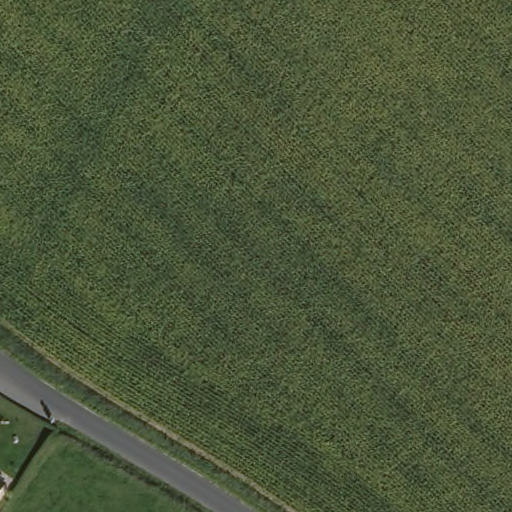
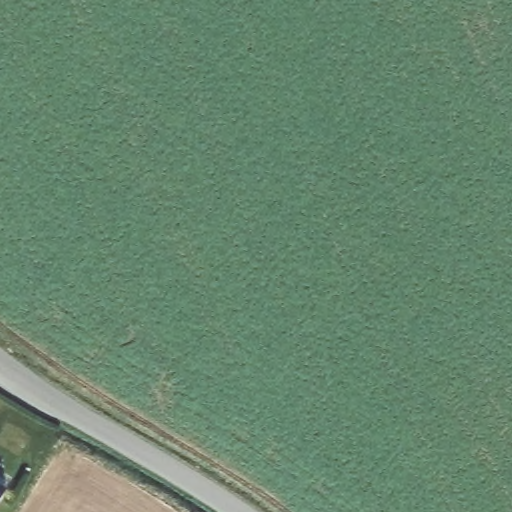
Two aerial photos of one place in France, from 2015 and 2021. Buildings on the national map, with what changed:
unchanged [(0,499),(0,476),(10,484),(0,499)]

